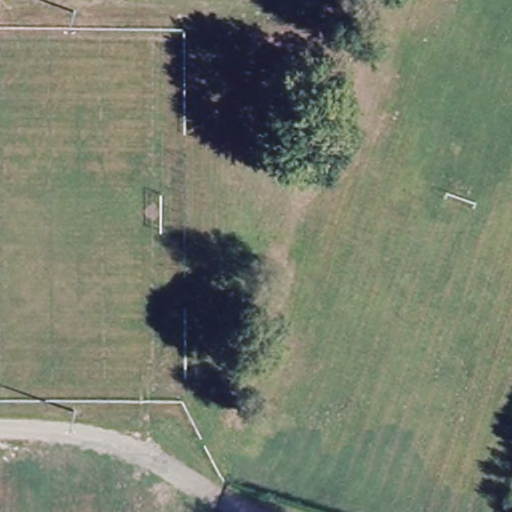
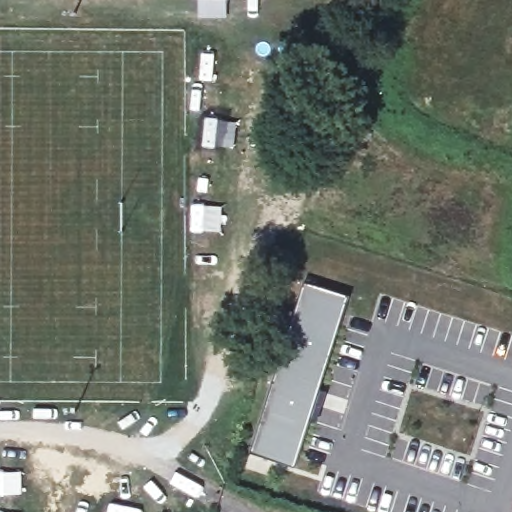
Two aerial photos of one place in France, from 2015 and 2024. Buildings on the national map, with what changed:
new [(317,423),(310,421),(295,467),(250,453),(304,281),(349,296),(320,389),(327,392),(317,423)]

